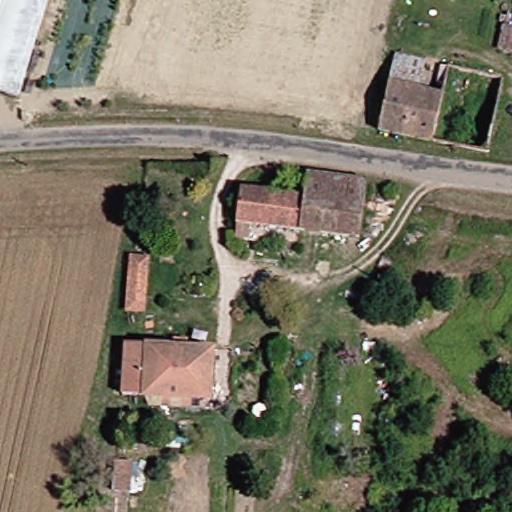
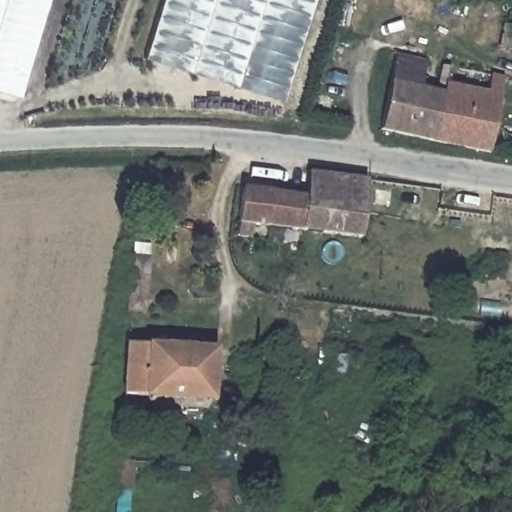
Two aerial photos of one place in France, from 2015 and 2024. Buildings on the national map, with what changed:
unchanged [(22,102),(0,95),(0,0),(53,0),(22,102)]
new [(160,0),(311,0),(278,102),(142,60),(160,0)]
unchanged [(512,50),(512,53),(511,52),(512,50)]
unchanged [(497,118),(490,150),(378,130),(390,82),(418,89),(423,90),(421,102),(440,106),(443,95),(449,67),(506,79),(497,118)]
unchanged [(312,169),(312,168),(329,170),(371,176),(361,234),(253,223),(247,243),(236,242),(245,178),(261,180),(260,187),(309,193),(312,169)]
unchanged [(208,347),(206,394),(140,392),(142,345),(208,347)]

